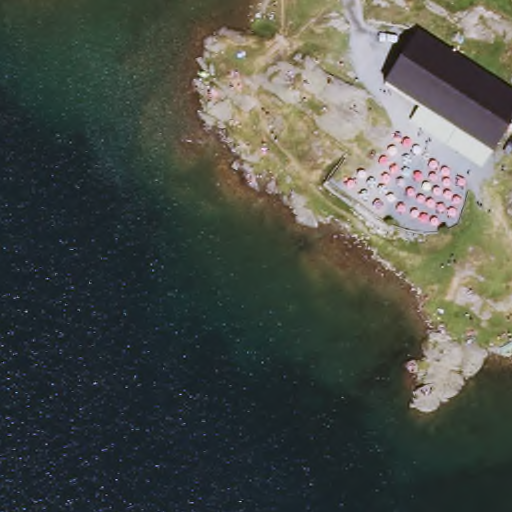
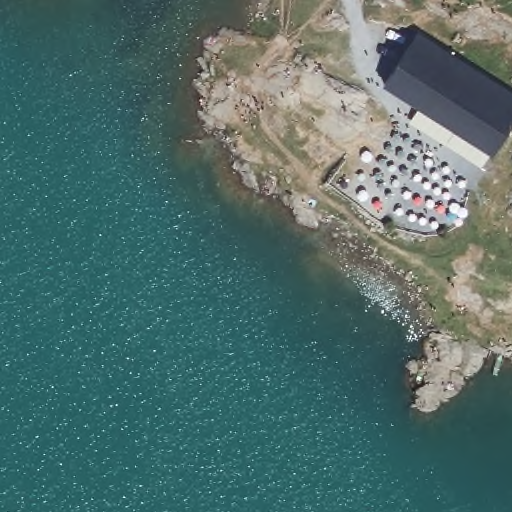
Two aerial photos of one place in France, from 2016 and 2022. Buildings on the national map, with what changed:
unchanged [(512,99),(512,124),(510,122),(496,149),(387,84),(415,39),(512,99)]

